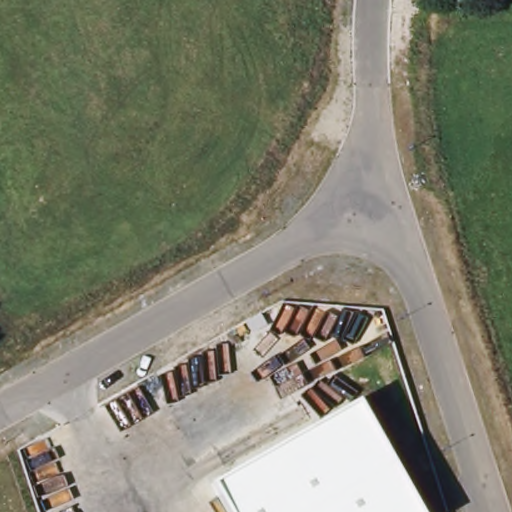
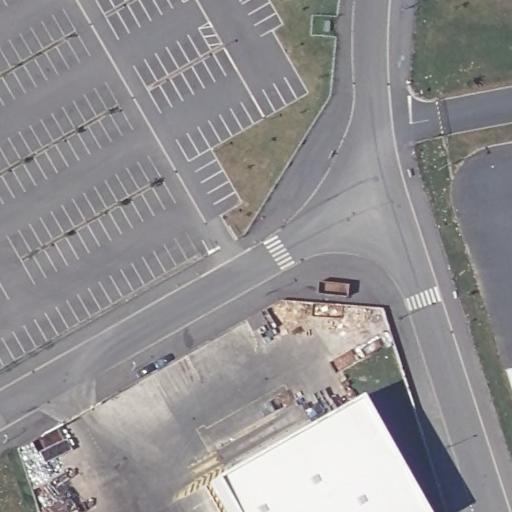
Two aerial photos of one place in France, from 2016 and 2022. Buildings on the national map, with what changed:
unchanged [(358,401),(422,512),(227,512),(212,485),(358,401)]

